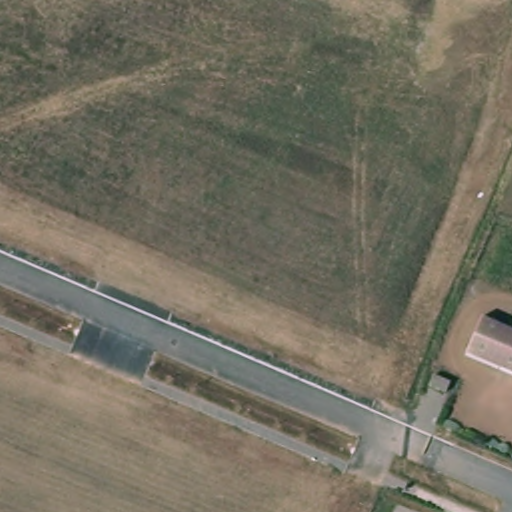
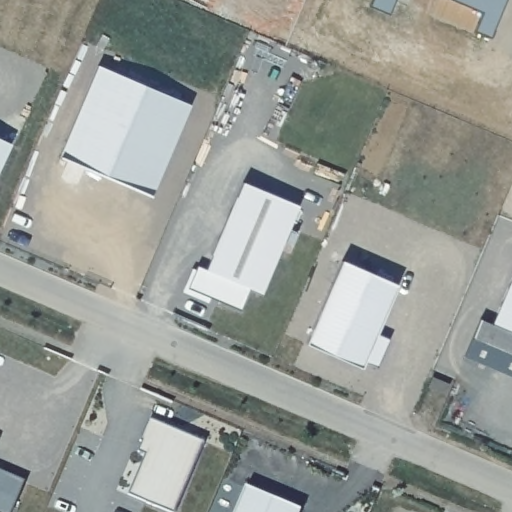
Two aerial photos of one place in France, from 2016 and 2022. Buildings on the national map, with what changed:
new [(489,36),(473,30),(481,10),(456,0),(504,0),(489,36)]
new [(100,67),(192,107),(153,199),(61,159),(100,67)]
new [(12,144),(0,169),(0,139),(12,144)]
new [(196,263),(205,267),(242,180),(298,204),(261,291),(249,286),(240,309),(186,286),(196,263)]
new [(341,259),(396,282),(375,330),(389,337),(377,365),(331,345),(328,351),(305,341),(341,259)]
new [(512,277),(512,331),(492,323),(512,277)]
unchanged [(481,317),(512,331),(512,376),(464,355),(481,317)]
new [(142,440),(140,440),(149,417),(205,440),(174,512),(172,512),(129,493),(145,454),(138,450),(142,440)]
new [(25,480),(11,512),(0,512),(0,469),(25,480)]
new [(246,485),(301,508),(299,512),(234,512),(236,507),(246,485)]

